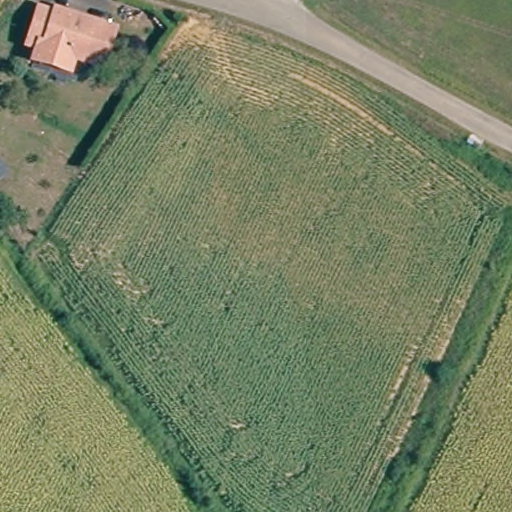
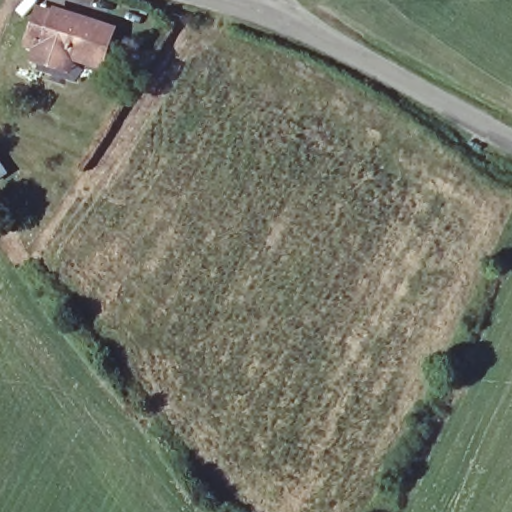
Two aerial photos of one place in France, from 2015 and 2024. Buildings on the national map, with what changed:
unchanged [(57,68),(34,61),(38,51),(28,47),(38,12),(59,19),(60,15),(84,22),(83,27),(99,31),(100,26),(112,29),(100,70),(72,62),(70,72),(57,68)]

